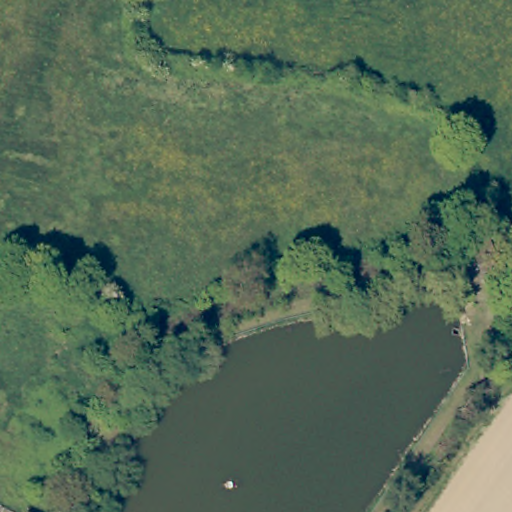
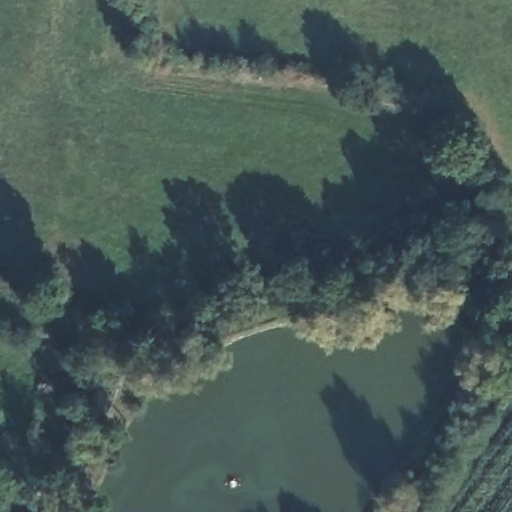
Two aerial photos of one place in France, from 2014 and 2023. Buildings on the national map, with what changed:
[]

